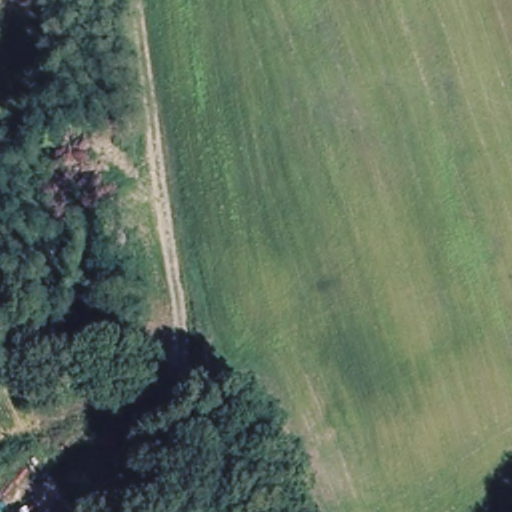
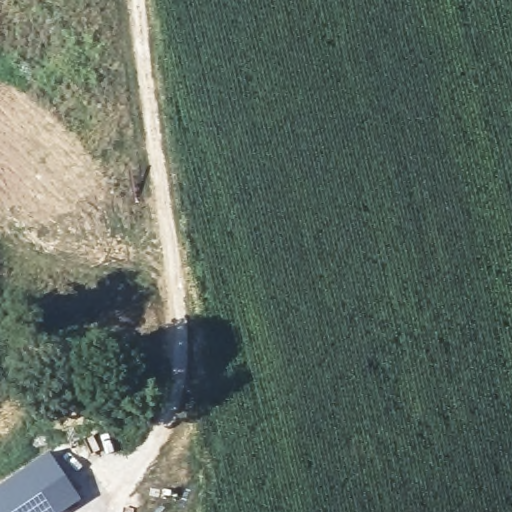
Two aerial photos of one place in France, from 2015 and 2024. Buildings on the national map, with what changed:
new [(81,500),(62,512),(0,512),(0,483),(49,450),(81,500)]
demolished [(38,459),(68,512),(0,512),(0,481),(38,459)]

